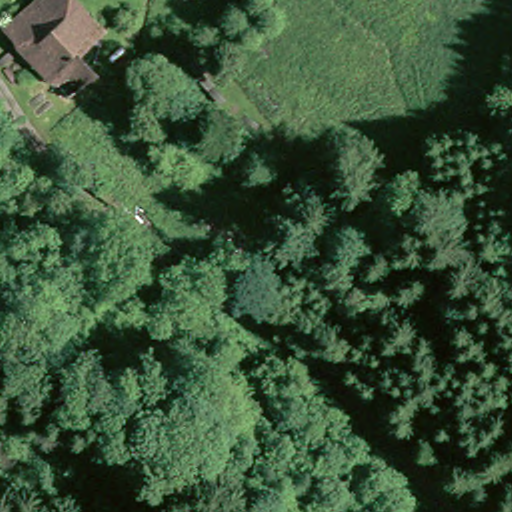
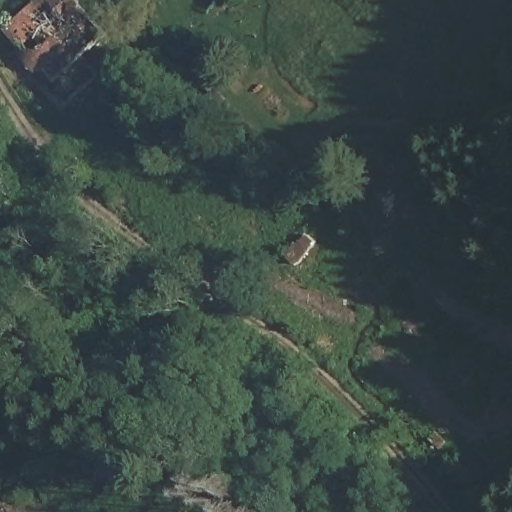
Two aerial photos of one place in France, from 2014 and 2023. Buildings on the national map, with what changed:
unchanged [(54,85),(6,31),(30,11),(42,0),(66,0),(102,37),(78,62),(94,80),(70,103),(54,85)]

